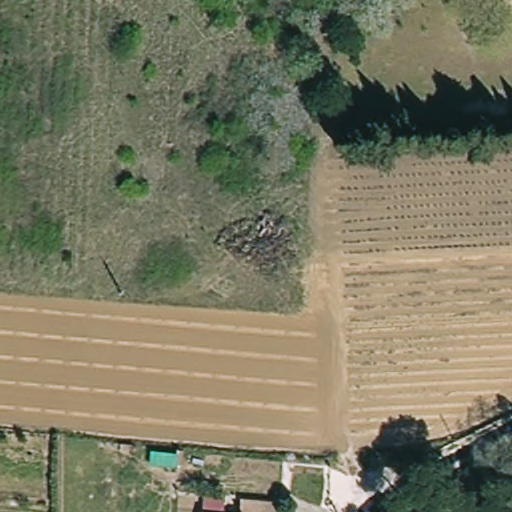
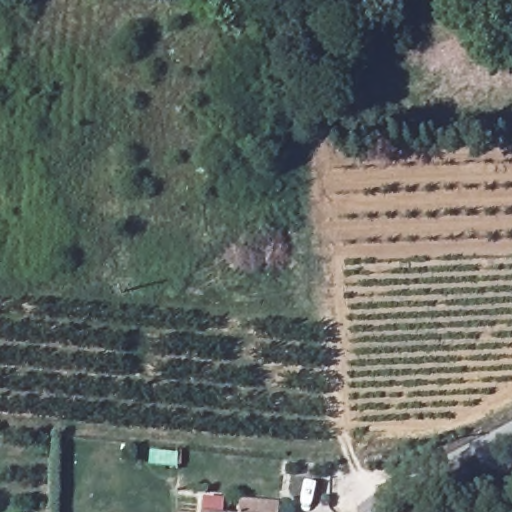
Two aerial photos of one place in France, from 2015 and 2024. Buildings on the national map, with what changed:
unchanged [(240,498),(280,502),(280,512),(238,512),(240,498)]

